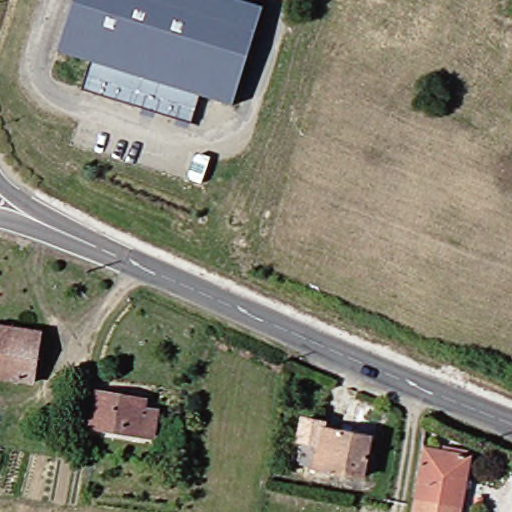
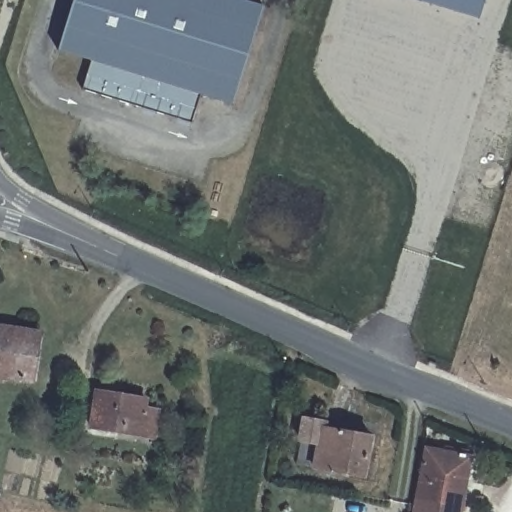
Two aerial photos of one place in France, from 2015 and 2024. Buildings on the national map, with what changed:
unchanged [(265,8),(234,106),(201,95),(192,124),(83,90),(92,61),(60,51),(75,0),(240,0),(265,8)]
new [(414,0),(485,0),(479,20),(414,0)]
unchanged [(35,381),(0,376),(0,327),(41,333),(35,381)]
unchanged [(146,393),(147,402),(161,406),(157,430),(93,422),(96,387),(146,393)]
unchanged [(325,426),(373,435),(366,474),(316,464),(325,426)]
unchanged [(472,460),(464,511),(450,508),(449,512),(418,512),(430,451),(472,460)]

